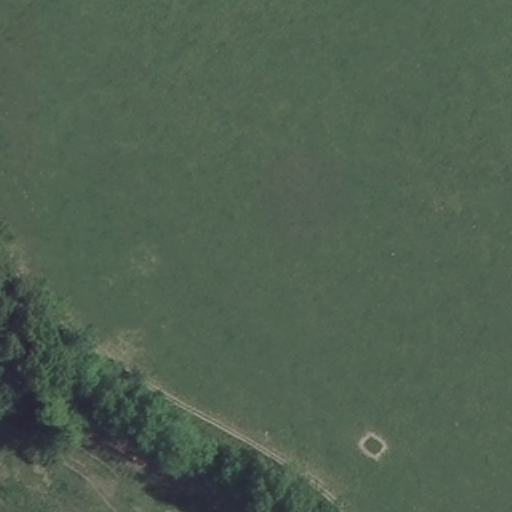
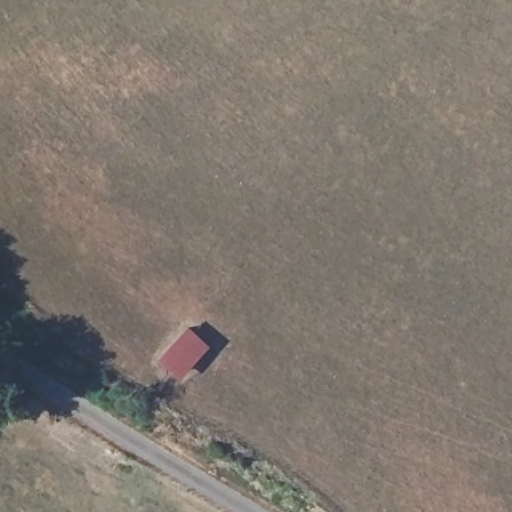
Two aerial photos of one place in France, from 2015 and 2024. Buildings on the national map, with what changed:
new [(157,359),(185,325),(207,344),(179,377),(157,359)]

